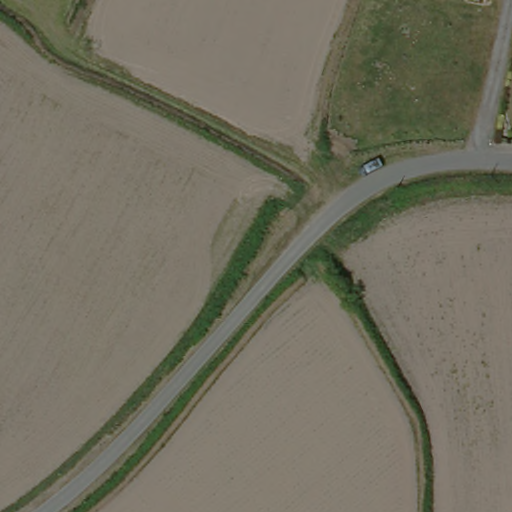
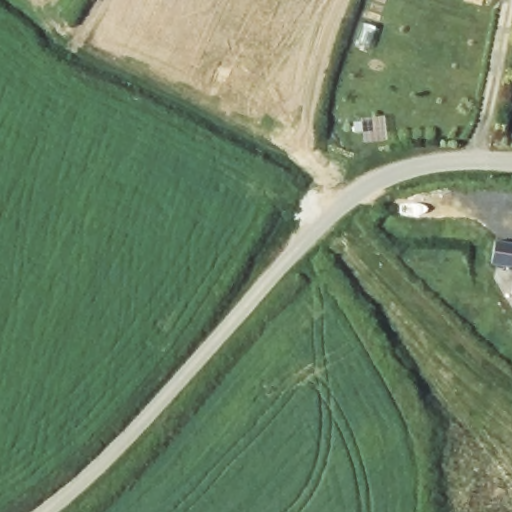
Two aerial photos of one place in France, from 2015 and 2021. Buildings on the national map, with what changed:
new [(495,241),(512,243),(512,266),(493,263),(495,241)]

